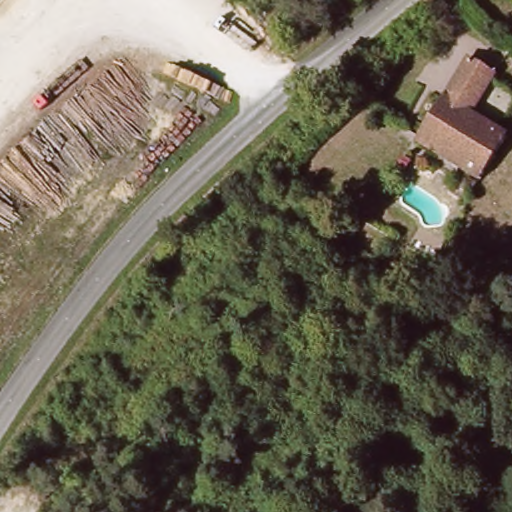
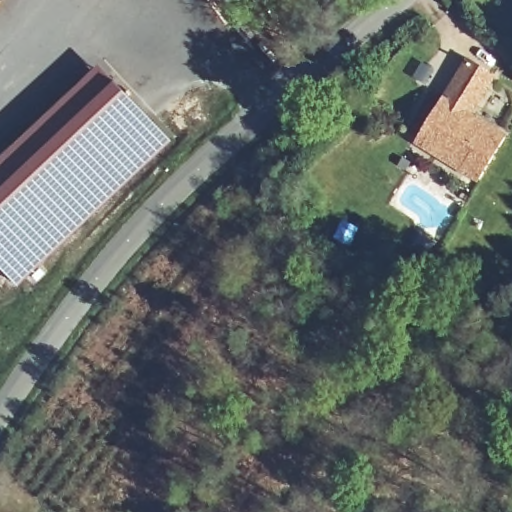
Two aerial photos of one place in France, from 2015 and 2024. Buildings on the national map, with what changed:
new [(176,135),(22,279),(0,256),(0,155),(105,58),(176,135)]
unchanged [(466,64),(493,80),(470,121),(503,141),(476,181),(416,146),(466,64)]

